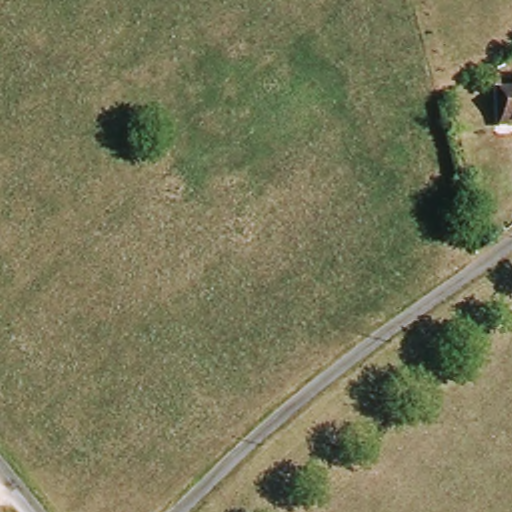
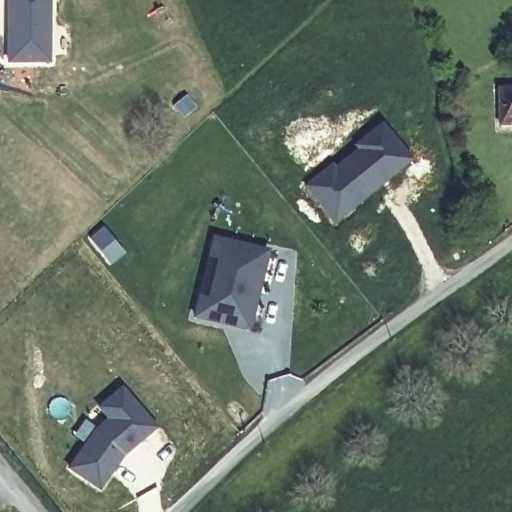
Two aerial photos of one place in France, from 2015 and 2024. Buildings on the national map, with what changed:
new [(52,0),(51,62),(6,62),(6,0),(52,0)]
unchanged [(500,92),(512,92),(512,124),(498,123),(500,92)]
new [(332,160),(335,163),(353,148),(350,144),(382,119),(415,158),(335,223),(303,185),(332,160)]
new [(251,331),(193,317),(211,236),(270,250),(251,331)]
new [(125,456),(100,490),(66,466),(81,442),(106,422),(96,412),(122,386),(159,427),(125,456)]

